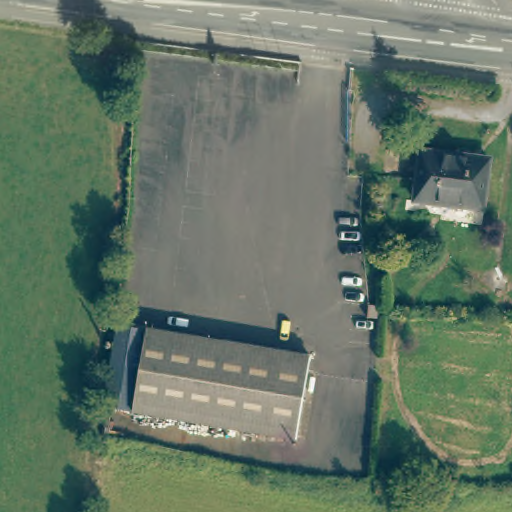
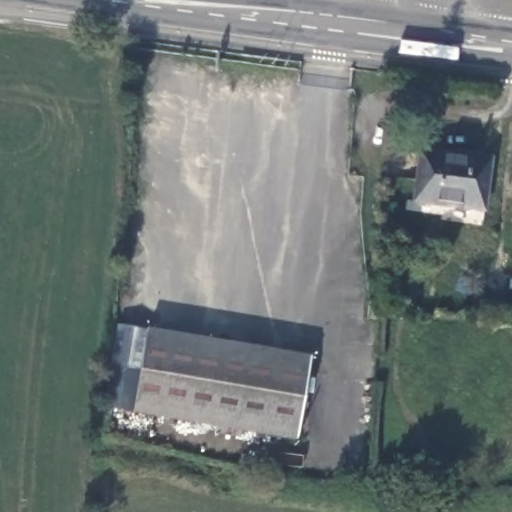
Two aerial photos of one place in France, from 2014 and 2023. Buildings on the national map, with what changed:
unchanged [(421,151),(494,161),(488,208),(416,199),(418,178),(421,151)]
unchanged [(368,321),(369,308),(379,310),(378,322),(368,321)]
unchanged [(307,353),(294,437),(128,409),(133,366),(107,361),(113,321),(307,353)]

